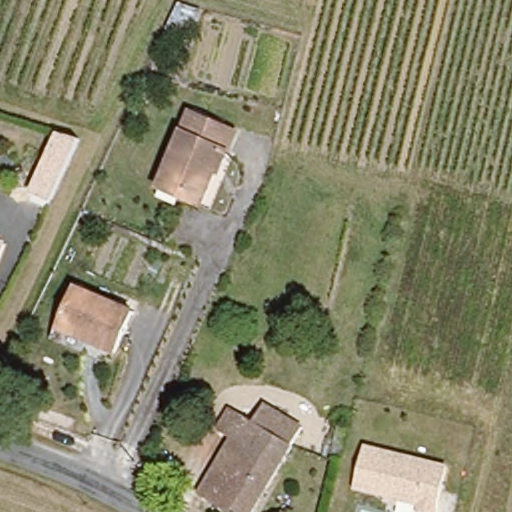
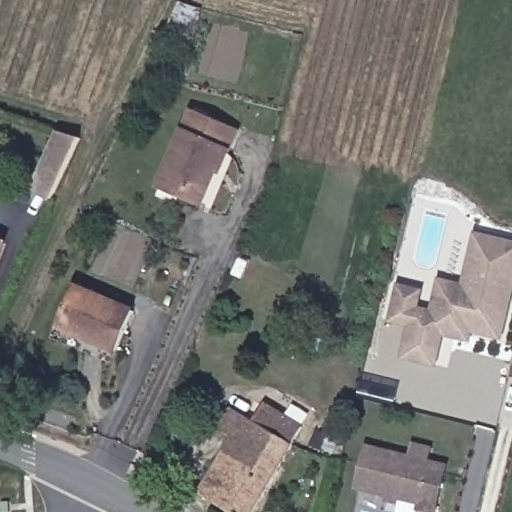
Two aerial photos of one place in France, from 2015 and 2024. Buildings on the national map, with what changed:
unchanged [(200,9),(193,41),(166,33),(175,1),(200,9)]
unchanged [(211,171),(196,207),(159,191),(192,115),(234,134),(225,153),(217,174),(211,171)]
unchanged [(80,139),(50,202),(29,194),(57,132),(80,139)]
new [(407,357),(415,326),(396,321),(399,305),(436,313),(440,296),(443,281),(467,287),(479,235),(512,242),(512,305),(505,337),(475,330),(473,339),(446,333),(439,365),(407,357)]
unchanged [(7,239),(0,257),(0,237),(7,239)]
unchanged [(72,286),(132,314),(114,354),(53,326),(72,286)]
new [(399,305),(403,287),(423,292),(420,310),(399,305)]
unchanged [(198,497),(232,438),(217,430),(230,408),(254,423),(264,406),(302,428),(292,445),(253,512),(225,512),(198,497)]
unchanged [(440,512),(438,512),(423,509),(425,503),(361,489),(371,447),(451,465),(440,512)]

